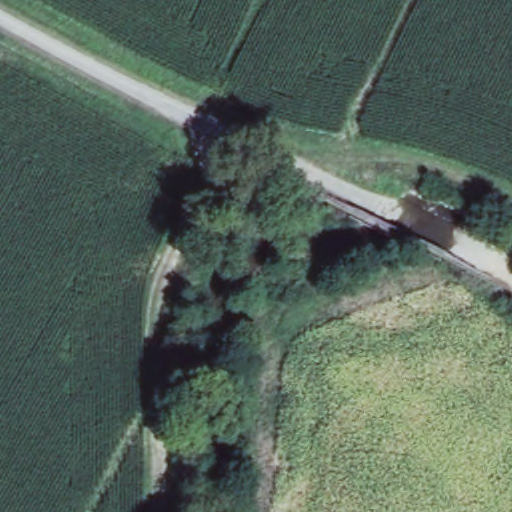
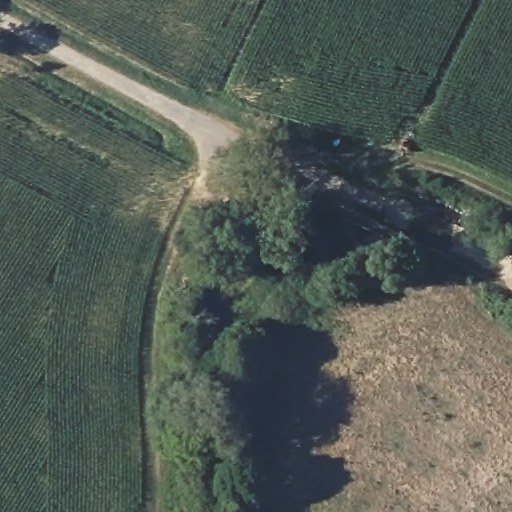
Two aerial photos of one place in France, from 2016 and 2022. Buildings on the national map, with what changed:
unchanged [(292,183),(285,197),(258,184),(264,171),(292,183)]

